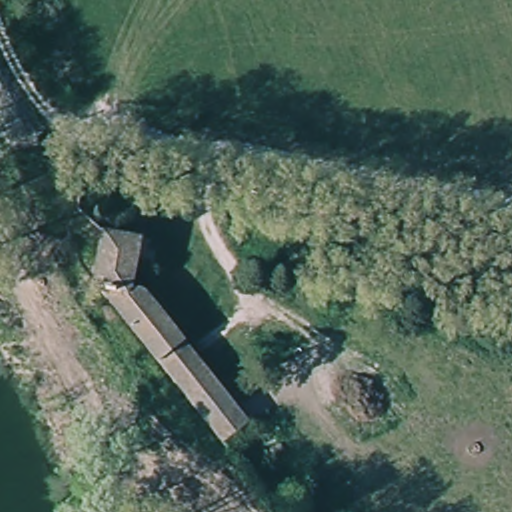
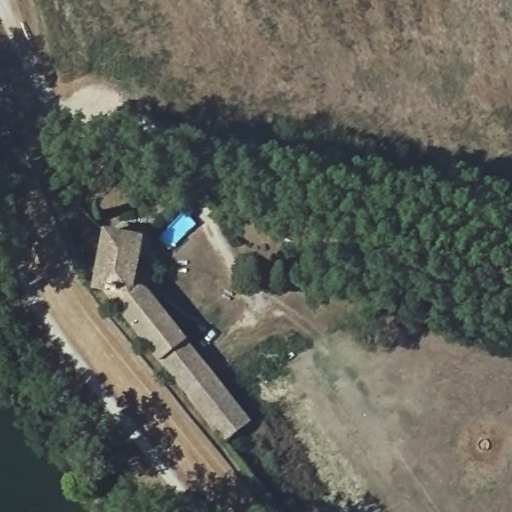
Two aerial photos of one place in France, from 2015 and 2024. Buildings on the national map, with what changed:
unchanged [(106,290),(99,290),(110,233),(128,237),(129,232),(146,236),(135,293),(136,292),(137,290),(140,289),(142,288),(144,288),(146,289),(151,294),(190,343),(163,365),(106,290)]
unchanged [(254,424),(227,446),(163,365),(190,343),(254,424)]

